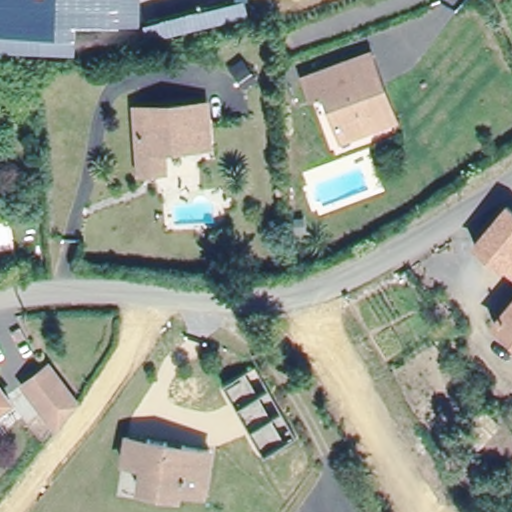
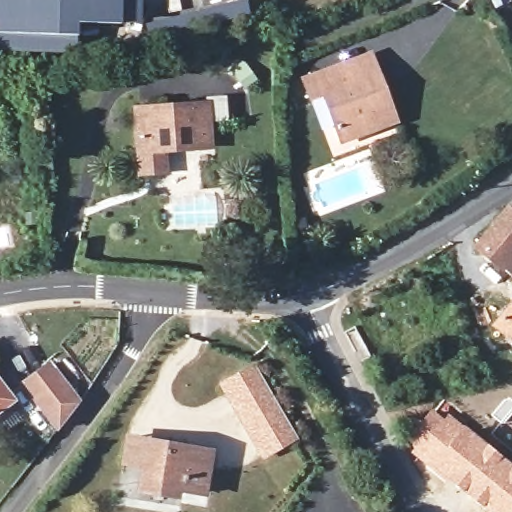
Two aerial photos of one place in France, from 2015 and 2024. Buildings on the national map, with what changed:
unchanged [(123,22),(81,21),(81,34),(0,33),(0,0),(124,0),(123,22)]
unchanged [(240,0),(249,0),(253,14),(154,39),(150,23),(240,0)]
unchanged [(382,123),(347,135),(329,87),(317,91),(311,75),(348,61),(374,52),(380,67),(393,102),(398,116),(382,123)]
unchanged [(139,170),(136,146),(134,105),(204,98),(207,142),(163,144),(160,144),(161,167),(139,170)]
unchanged [(474,240),(505,206),(512,212),(512,273),(474,240)]
unchanged [(494,321),(512,299),(512,336),(494,321)]
unchanged [(47,354),(76,394),(55,420),(22,374),(47,354)]
unchanged [(265,457),(226,384),(259,367),(298,439),(265,457)]
unchanged [(0,410),(0,384),(12,401),(0,410)]
new [(442,415),(446,410),(512,464),(512,512),(488,512),(407,448),(432,408),(442,415)]
unchanged [(210,489),(188,484),(186,492),(147,484),(152,460),(131,456),(136,432),(156,436),(218,448),(210,489)]

